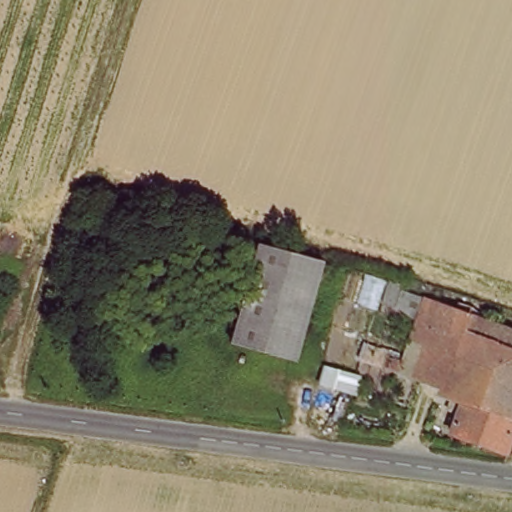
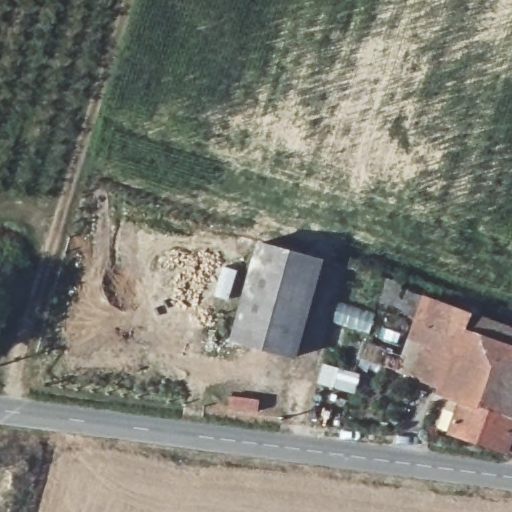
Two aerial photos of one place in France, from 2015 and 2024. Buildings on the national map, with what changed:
unchanged [(236,348),(233,347),(258,246),(323,263),(321,271),(298,362),(236,348)]
unchanged [(414,371),(394,362),(412,311),(387,301),(392,287),(439,304),(414,371)]
unchanged [(439,304),(468,314),(463,330),(442,382),(414,371),(439,304)]
unchanged [(508,451),(451,432),(460,402),(437,393),(442,382),(463,330),(468,314),(512,330),(512,440),(508,451)]
unchanged [(376,356),(394,362),(389,378),(371,371),(376,356)]

